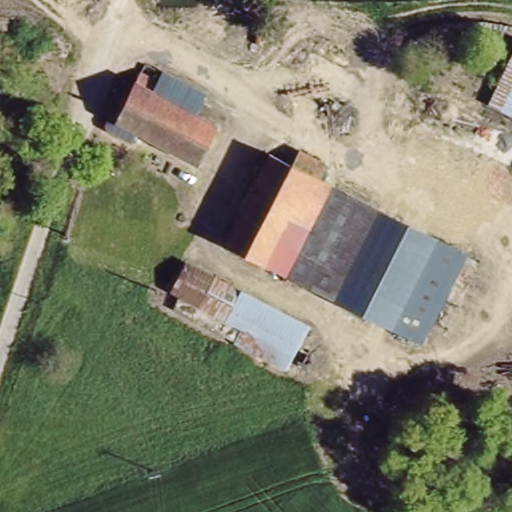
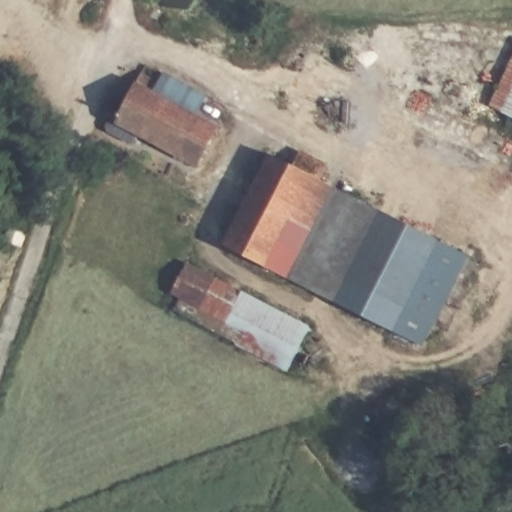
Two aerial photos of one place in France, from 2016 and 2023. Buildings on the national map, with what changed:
unchanged [(47,55),(42,63),(17,49),(22,40),(47,55)]
unchanged [(512,53),(512,120),(487,107),(512,53)]
unchanged [(194,166),(116,123),(118,118),(104,111),(118,85),(130,92),(145,66),(164,77),(203,99),(194,115),(215,127),(194,166)]
unchanged [(222,244),(269,157),(292,169),(300,153),(354,183),(345,199),(300,284),(222,244)]
unchanged [(300,284),(345,199),(428,242),(384,328),(300,284)]
unchanged [(460,257),(414,345),(384,328),(428,242),(460,257)]
unchanged [(227,322),(222,330),(171,299),(177,289),(164,281),(181,253),(345,352),(327,382),(227,322)]

